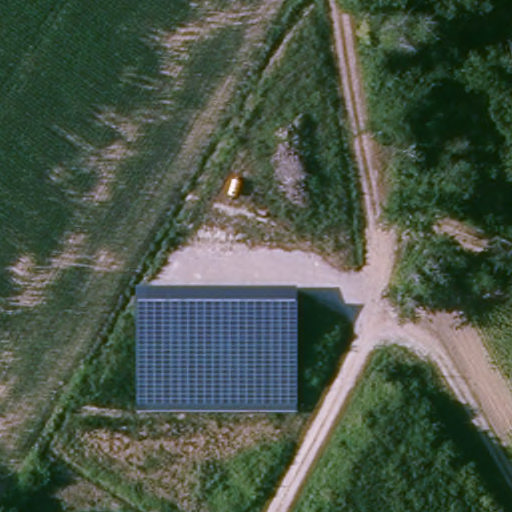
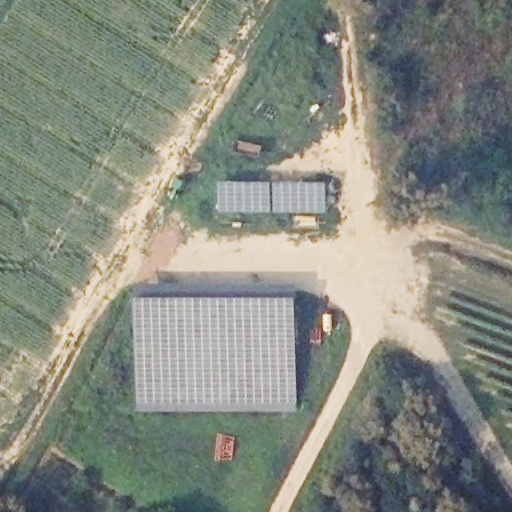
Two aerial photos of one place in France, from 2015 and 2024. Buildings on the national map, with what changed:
new [(220,183),(327,184),(327,214),(221,213),(220,183)]
unchanged [(297,285),(296,411),(137,408),(137,285),(297,285)]

